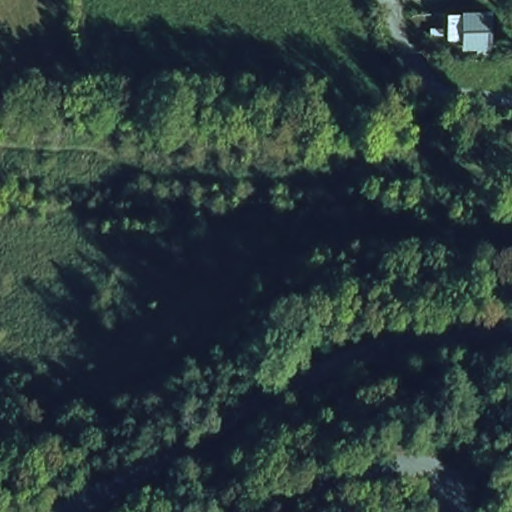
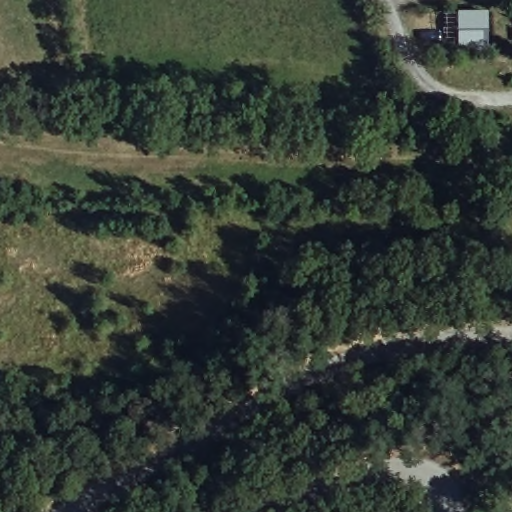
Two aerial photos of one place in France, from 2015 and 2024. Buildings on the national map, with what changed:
unchanged [(491,5),(493,46),(462,47),(460,5),(491,5)]

